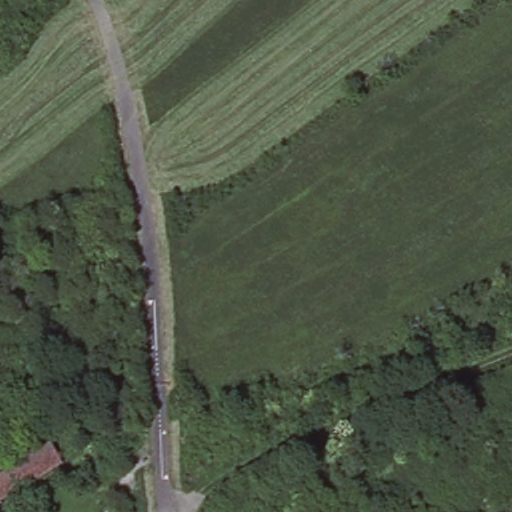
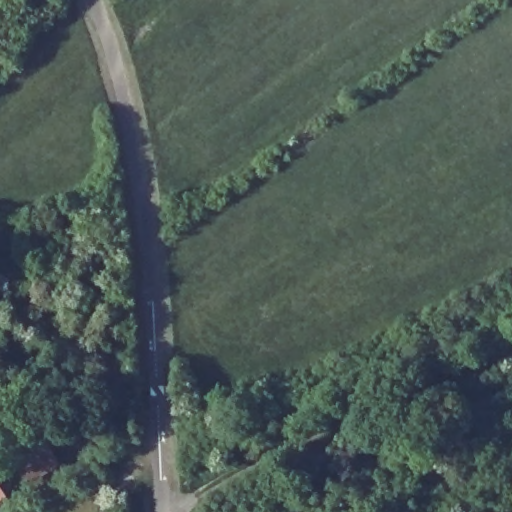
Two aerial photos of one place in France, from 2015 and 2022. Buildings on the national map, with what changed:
[]

